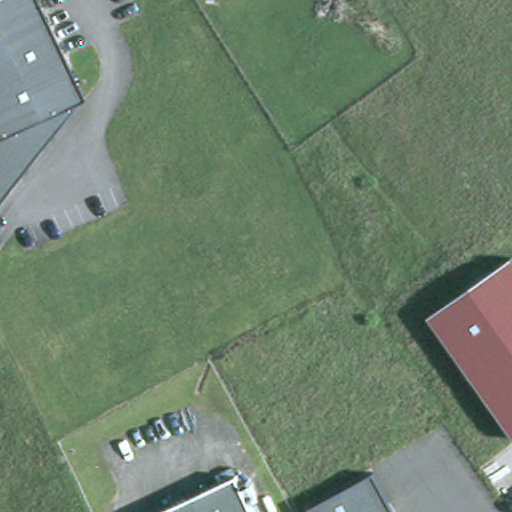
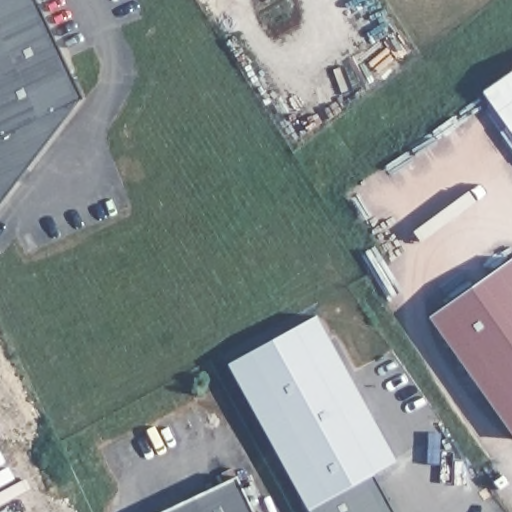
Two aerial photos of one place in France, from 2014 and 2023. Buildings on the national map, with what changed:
unchanged [(0,192),(0,0),(39,0),(84,88),(63,116),(12,186),(0,192)]
new [(512,136),(480,92),(512,70),(512,136)]
unchanged [(512,256),(512,435),(427,317),(512,256)]
new [(228,361),(317,315),(397,460),(372,473),(309,510),(228,361)]
unchanged [(237,473),(256,512),(157,512),(237,473)]
unchanged [(394,512),(309,512),(309,510),(372,473),(394,512)]

